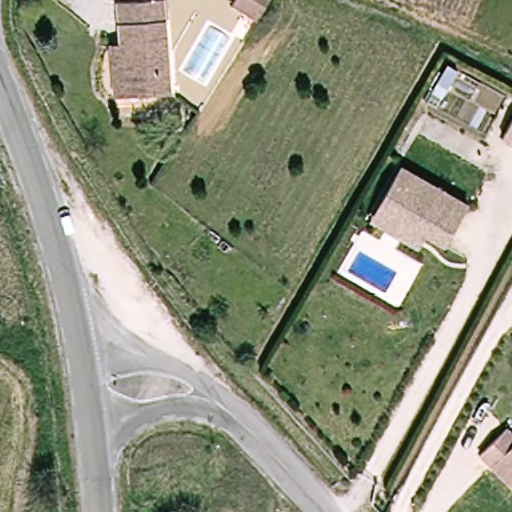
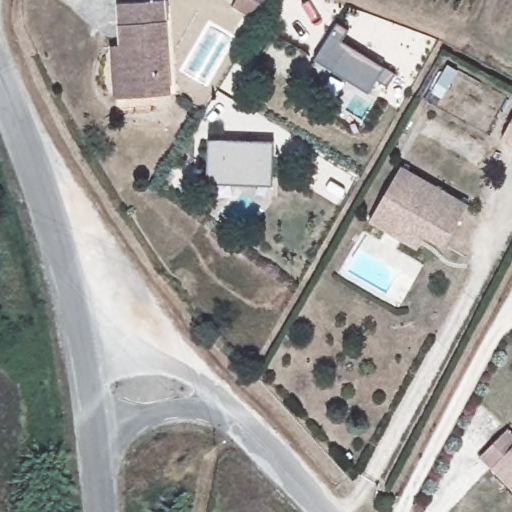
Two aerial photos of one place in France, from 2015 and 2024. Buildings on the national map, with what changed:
unchanged [(105,42),(118,42),(121,0),(167,0),(163,97),(116,94),(101,94),(105,42)]
unchanged [(255,22),(229,7),(233,0),(267,0),(255,22)]
new [(338,22),(350,30),(342,41),(385,67),(396,74),(388,86),(378,79),(369,94),(315,60),(338,22)]
unchanged [(512,114),(512,145),(499,138),(512,114)]
new [(275,141),(273,186),(207,185),(209,139),(275,141)]
unchanged [(372,220),(380,206),(403,166),(470,202),(446,243),(427,232),(419,247),(372,220)]
unchanged [(480,456),(497,440),(506,430),(512,436),(512,488),(492,468),(480,456)]

